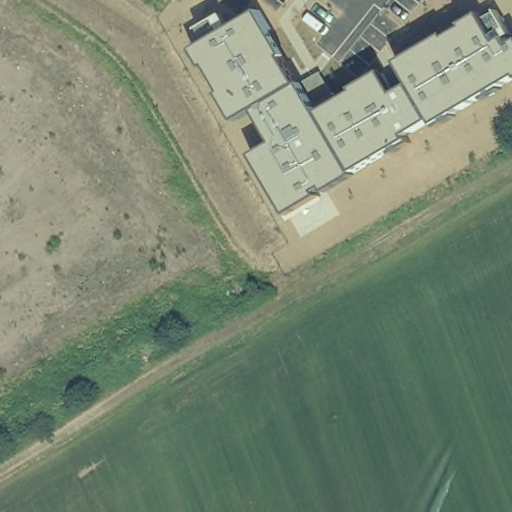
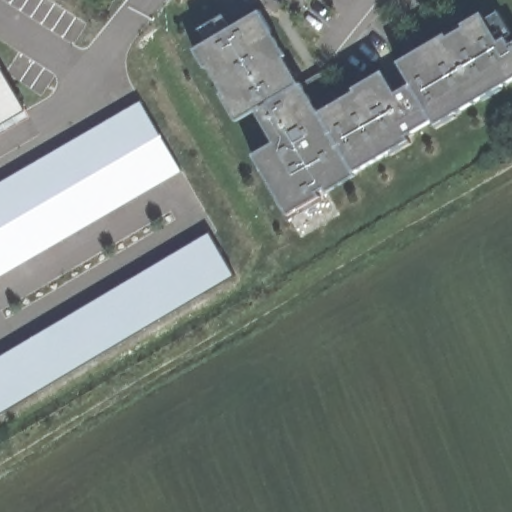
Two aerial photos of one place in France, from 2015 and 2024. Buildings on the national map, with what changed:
unchanged [(206,43),(198,30),(223,15),(231,28),(259,11),(271,30),(269,31),(299,84),(321,73),(338,101),(384,75),(396,93),(410,85),(398,62),(445,34),(448,36),(463,28),(462,24),(481,13),(484,18),(498,11),(512,35),(506,39),(509,45),(512,43),(512,80),(501,87),(502,90),(484,101),(482,99),(455,114),(456,118),(437,129),(432,121),(408,136),(411,144),(392,155),(389,153),(356,173),(356,176),(328,193),(324,189),(319,192),(323,201),(288,222),(259,175),(263,173),(253,155),(274,143),(255,111),(236,121),(220,95),(223,92),(208,68),(205,69),(194,50),(206,43)]
new [(28,110),(32,118),(0,136),(0,64),(27,111),(28,110)]
new [(182,171),(0,276),(0,184),(142,101),(182,171)]
new [(236,276),(0,415),(0,358),(211,234),(236,276)]

